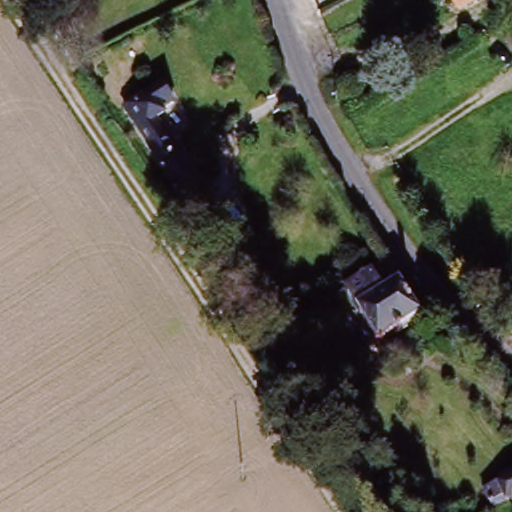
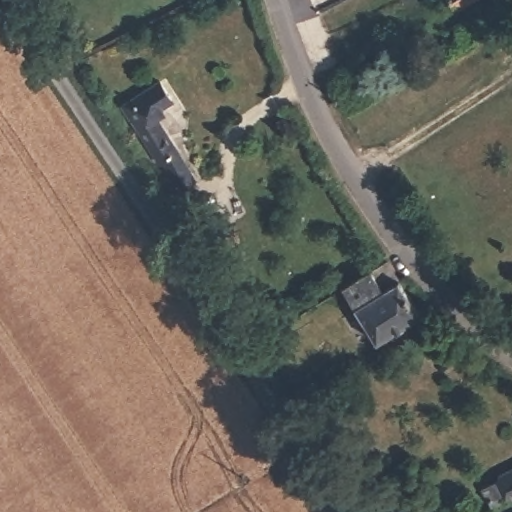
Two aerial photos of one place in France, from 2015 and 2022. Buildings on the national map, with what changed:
unchanged [(459,11),(453,0),(478,0),(459,11)]
unchanged [(186,163),(165,176),(128,119),(150,106),(186,163)]
unchanged [(240,247),(222,258),(205,230),(223,220),(240,247)]
unchanged [(383,262),(395,275),(423,321),(378,344),(343,287),(383,262)]
unchanged [(512,468),(512,504),(496,512),(495,512),(480,485),(512,468)]
unchanged [(374,512),(358,486),(380,475),(402,512),(374,512)]

